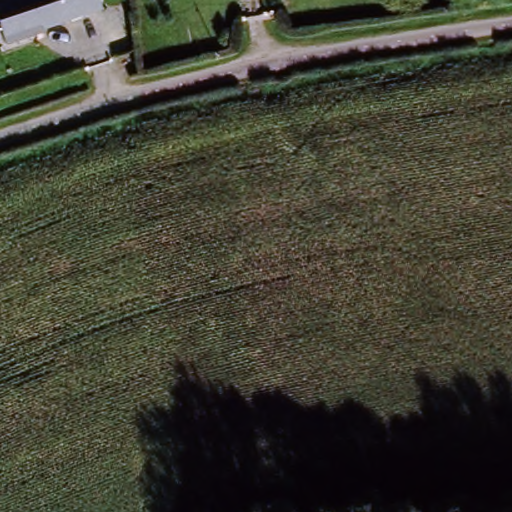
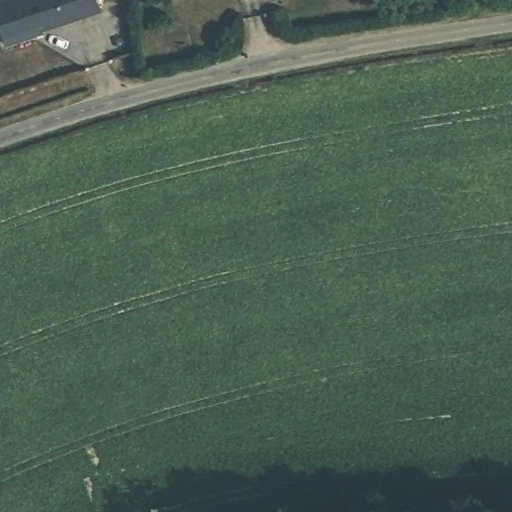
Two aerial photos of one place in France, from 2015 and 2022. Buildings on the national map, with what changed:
unchanged [(91,0),(95,13),(35,33),(35,35),(5,45),(0,28),(0,2),(5,0),(91,0)]

